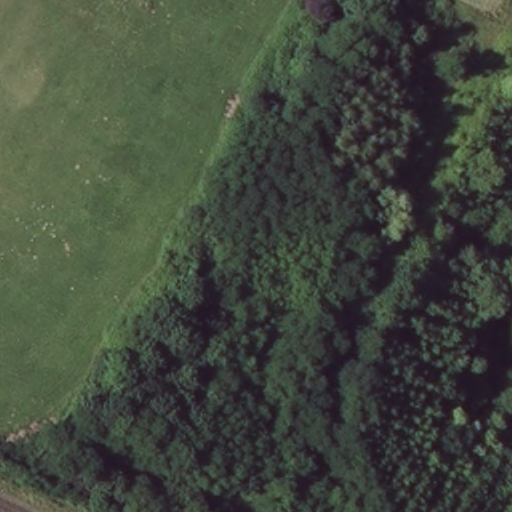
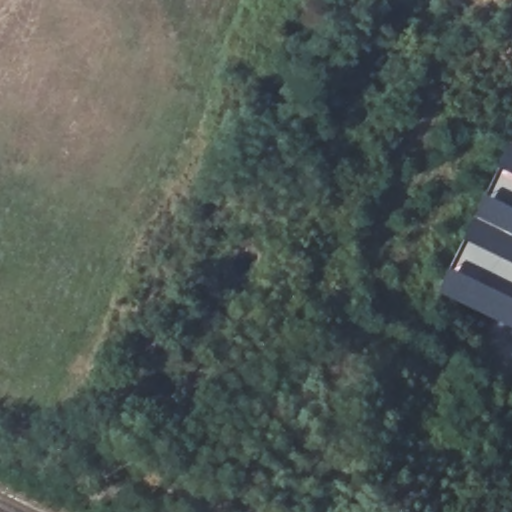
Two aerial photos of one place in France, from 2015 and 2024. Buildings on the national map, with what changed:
new [(512,156),(512,325),(444,292),(512,156)]

